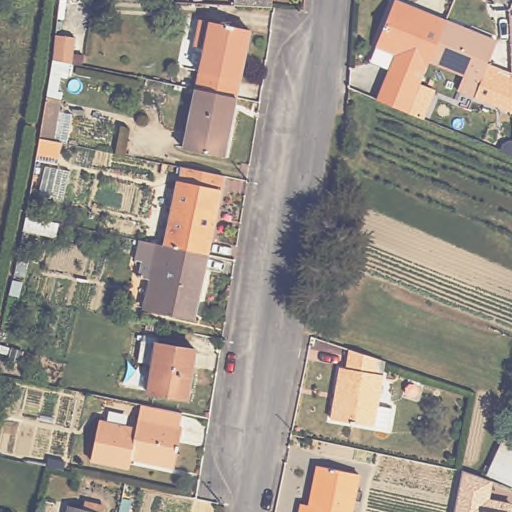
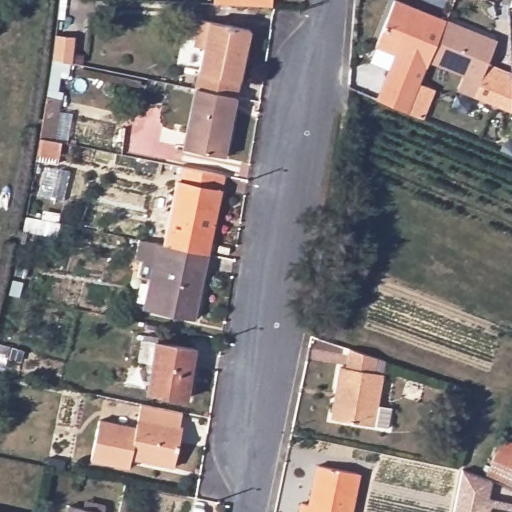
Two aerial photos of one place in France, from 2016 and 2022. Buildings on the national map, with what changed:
unchanged [(232,2),(232,0),(267,0),(267,4),(232,2)]
unchanged [(376,98),(394,51),(375,44),(392,0),(401,0),(444,17),(434,44),(428,57),(418,83),(431,88),(421,114),(406,110),(376,98)]
unchanged [(510,107),(488,98),(457,85),(462,70),(428,57),(434,44),(444,17),(496,38),(484,69),(497,75),(510,80),(510,107)]
unchanged [(196,86),(204,47),(195,45),(200,18),(249,28),(235,95),(196,86)]
unchanged [(51,62),(55,36),(75,38),(71,66),(51,62)]
unchanged [(223,154),(184,146),(196,86),(235,95),(223,154)]
unchanged [(35,163),(39,140),(60,145),(56,167),(35,163)]
unchanged [(181,250),(169,247),(185,170),(227,178),(211,256),(181,250)]
unchanged [(149,243),(169,247),(181,250),(211,256),(198,320),(150,311),(159,264),(141,261),(145,242),(149,243)]
unchanged [(195,351),(188,401),(148,395),(153,366),(138,363),(141,343),(195,351)]
unchanged [(387,431),(373,428),(335,422),(331,421),(335,395),(339,369),(346,371),(349,350),(385,362),(377,406),(391,409),(387,431)]
unchanged [(178,425),(181,425),(173,466),(130,458),(128,466),(91,459),(98,418),(134,425),(139,400),(142,401),(181,409),(178,425)]
unchanged [(487,475),(503,438),(512,442),(512,485),(487,475)]
unchanged [(309,507),(317,466),(358,475),(350,512),(300,512),(302,505),(309,507)]
unchanged [(500,512),(484,507),(488,496),(508,502),(504,512),(500,512)]
unchanged [(69,512),(70,508),(89,512),(69,512)]

